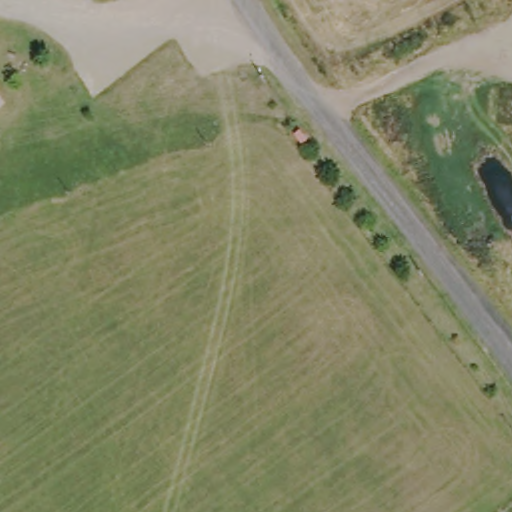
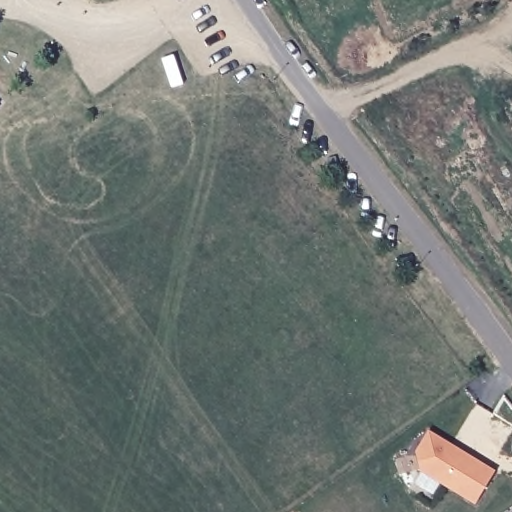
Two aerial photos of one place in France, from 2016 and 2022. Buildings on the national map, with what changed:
new [(428,430),(496,471),(476,505),(420,472),(416,452),(428,430)]

